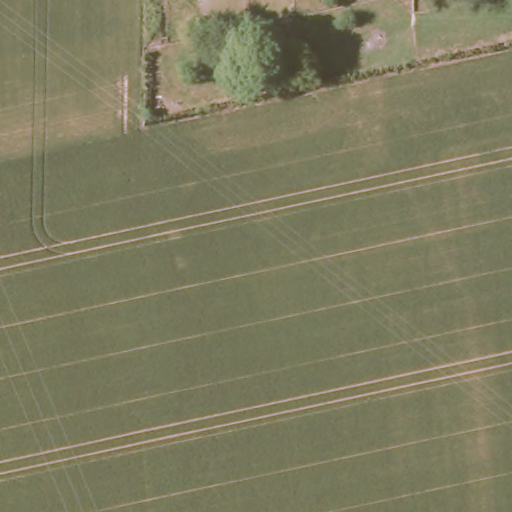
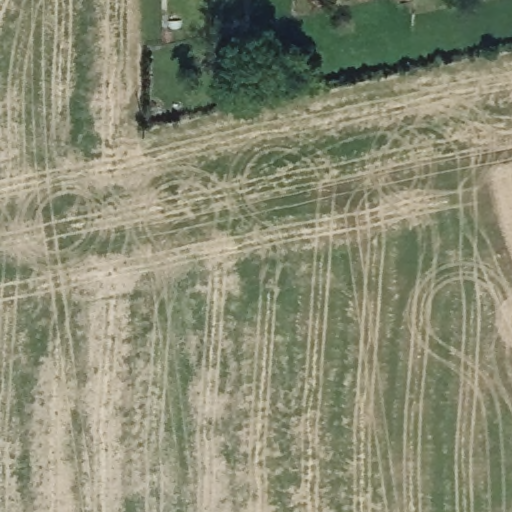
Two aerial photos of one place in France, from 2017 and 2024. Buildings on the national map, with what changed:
[]

